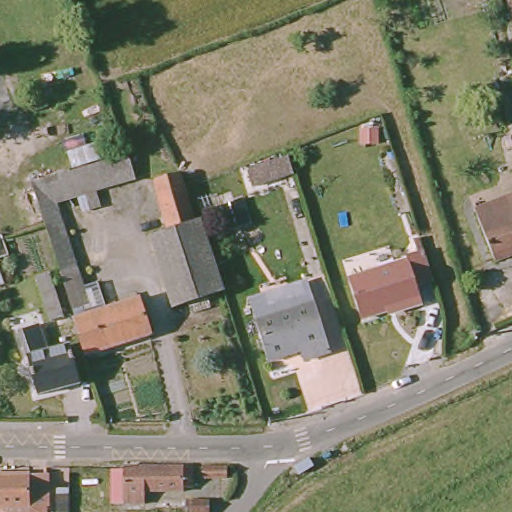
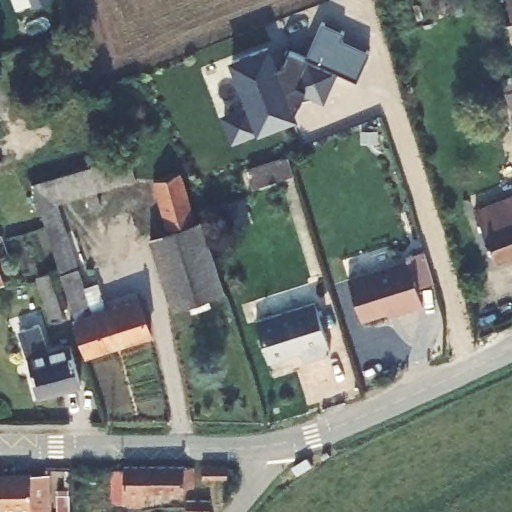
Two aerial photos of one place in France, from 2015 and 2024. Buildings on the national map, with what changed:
unchanged [(512,23),(511,23),(508,0),(512,0),(512,23)]
new [(339,70),(325,100),(305,91),(293,111),(297,117),(255,132),(231,141),(221,112),(243,102),(229,58),(270,43),(280,65),(284,64),(292,47),(308,53),(322,21),(345,29),(342,36),(370,48),(358,78),(339,70)]
unchanged [(501,80),(512,78),(512,121),(505,93),(501,80)]
unchanged [(115,164),(125,161),(128,160),(135,184),(96,196),(101,212),(90,215),(85,199),(56,208),(39,214),(31,188),(115,164)]
unchanged [(153,185),(172,179),(180,177),(193,224),(194,227),(167,234),(153,185)]
unchanged [(475,211),(512,197),(512,254),(495,261),(475,211)]
unchanged [(56,208),(77,274),(83,292),(97,287),(106,313),(139,303),(151,340),(87,361),(85,353),(75,323),(60,276),(58,272),(43,225),(39,214),(56,208)]
unchanged [(200,224),(217,271),(225,297),(173,313),(150,241),(168,235),(177,232),(194,227),(200,224)]
unchanged [(2,234),(9,254),(0,257),(0,235),(2,234)]
unchanged [(407,261),(405,256),(423,250),(433,281),(417,287),(422,303),(399,310),(398,307),(361,319),(348,279),(407,261)]
unchanged [(50,279),(65,323),(51,327),(37,283),(50,279)]
unchanged [(315,303),(330,352),(303,361),(300,351),(268,361),(255,321),(315,303)]
unchanged [(63,394),(38,400),(28,362),(18,336),(38,329),(48,357),(70,351),(79,382),(80,389),(63,394)]
unchanged [(295,467),(308,458),(313,466),(299,474),(295,467)]
unchanged [(123,470),(123,467),(183,466),(183,467),(193,467),(194,488),(184,488),(184,492),(145,492),(145,504),(112,504),(112,470),(123,470)]
unchanged [(228,478),(202,479),(202,466),(227,466),(228,478)]
unchanged [(46,474),(47,512),(6,512),(6,508),(0,508),(0,475),(46,474)]
unchanged [(70,512),(57,512),(56,496),(70,495),(70,506),(70,512)]
unchanged [(209,500),(209,512),(186,512),(186,500),(209,500)]

